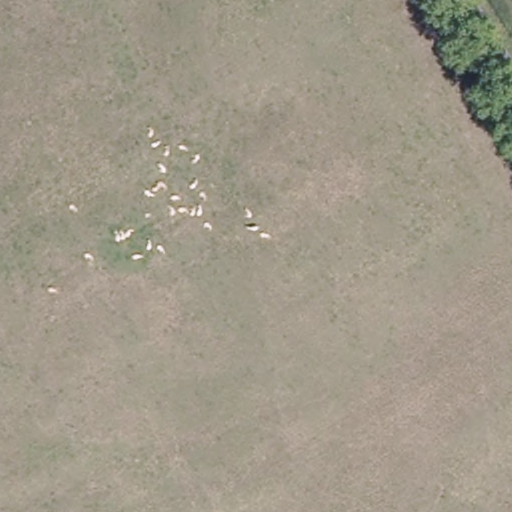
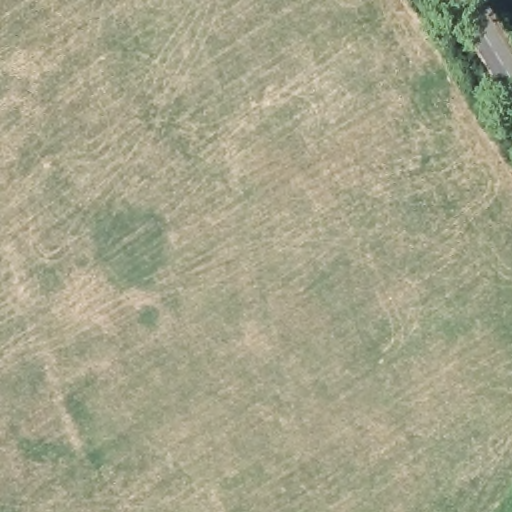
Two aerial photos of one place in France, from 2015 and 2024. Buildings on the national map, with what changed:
[]

